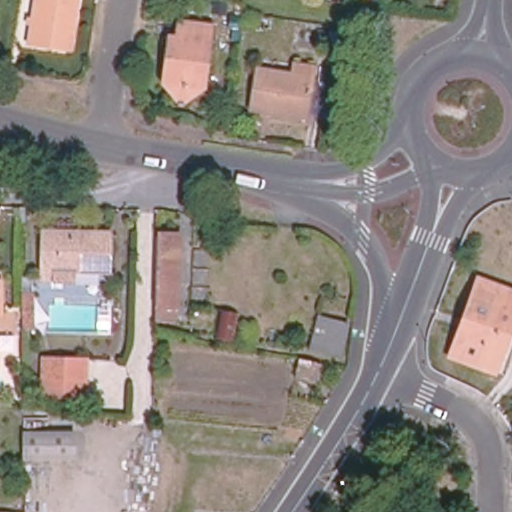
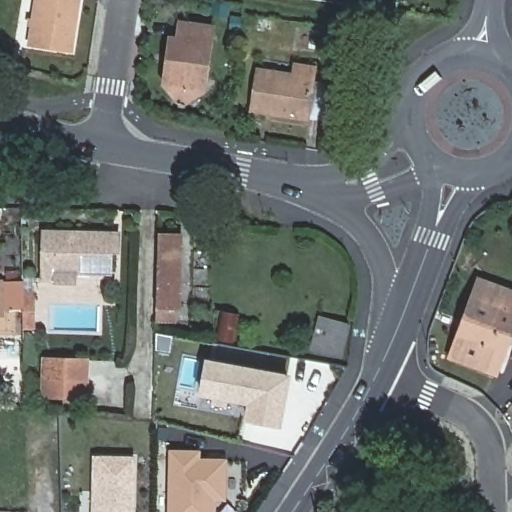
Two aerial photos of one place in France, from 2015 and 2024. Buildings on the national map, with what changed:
unchanged [(36,49),(43,0),(83,0),(76,55),(36,49)]
unchanged [(185,103),(169,85),(173,56),(176,37),(182,38),(185,22),(218,27),(210,89),(189,104),(185,103)]
unchanged [(307,119),(273,114),(272,116),(251,112),(258,70),(293,76),(295,65),(315,68),(307,119)]
unchanged [(109,273),(74,272),(74,280),(43,279),(45,233),(111,234),(109,273)]
unchanged [(177,324),(157,323),(159,235),(181,236),(177,324)]
unchanged [(36,329),(22,329),(22,278),(35,278),(36,329)]
unchanged [(478,279),(512,291),(512,330),(496,374),(458,360),(450,357),(466,313),(478,279)]
unchanged [(1,315),(0,315),(0,282),(1,282),(1,315)]
unchanged [(233,343),(217,340),(222,314),(237,317),(233,343)]
unchanged [(341,356),(312,349),(320,318),(348,326),(341,356)]
unchanged [(86,397),(44,395),(45,360),(87,361),(86,397)]
new [(272,423),(247,418),(250,402),(207,394),(202,393),(207,362),(213,363),(287,377),(281,408),(278,425),(272,423)]
unchanged [(318,383),(297,378),(301,362),(322,366),(318,383)]
demolished [(75,458),(26,459),(26,434),(75,433),(75,458)]
demolished [(171,469),(176,469),(174,511),(150,510),(154,440),(172,441),(171,469)]
new [(214,498),(213,512),(170,512),(172,452),(190,453),(198,453),(197,461),(190,461),(225,462),(224,498),(214,498)]
new [(100,512),(94,512),(96,459),(102,459),(100,512)]
new [(132,460),(130,512),(100,512),(102,459),(132,460)]

